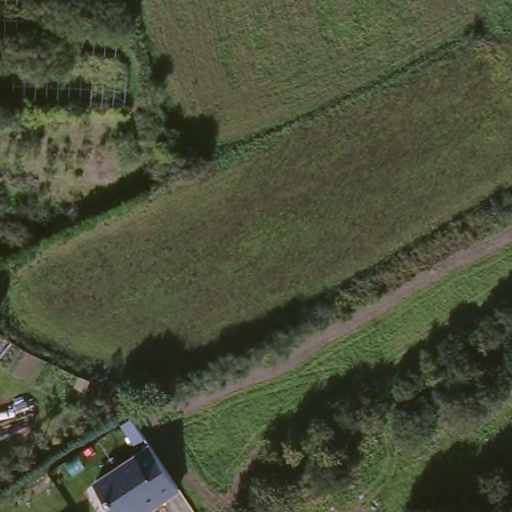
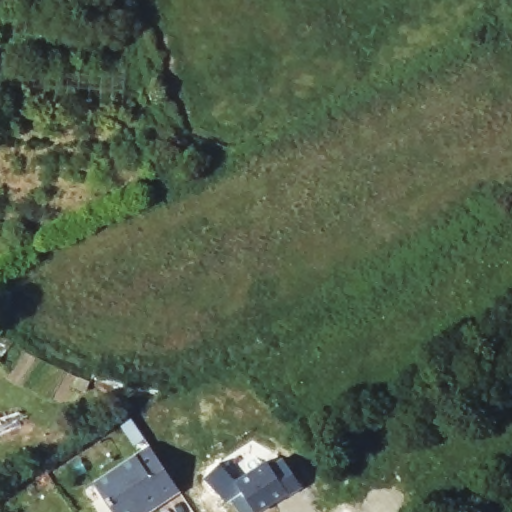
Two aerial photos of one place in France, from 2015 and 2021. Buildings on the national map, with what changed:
unchanged [(178,490),(146,511),(142,504),(130,512),(114,512),(94,483),(149,447),(178,490)]
new [(243,493),(235,483),(266,462),(270,468),(283,459),(301,487),(288,496),(286,493),(257,512),(238,512),(231,501),(243,493)]

